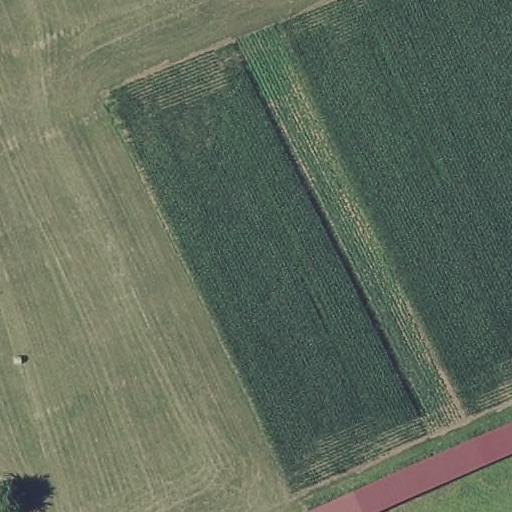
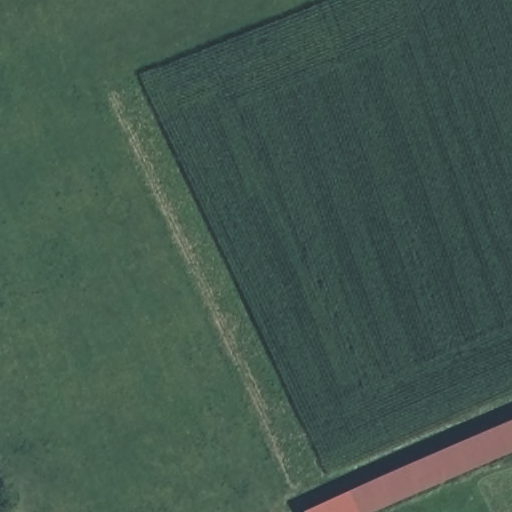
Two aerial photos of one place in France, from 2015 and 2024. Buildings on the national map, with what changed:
unchanged [(373,512),(308,512),(512,422),(512,451),(373,512)]

